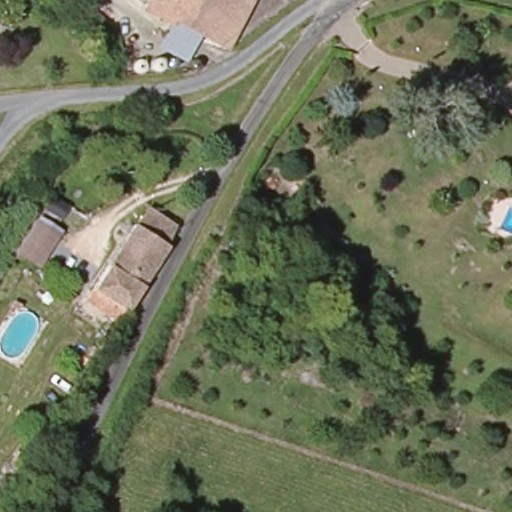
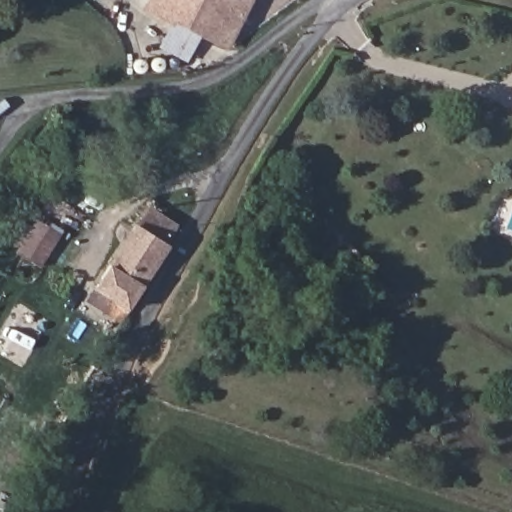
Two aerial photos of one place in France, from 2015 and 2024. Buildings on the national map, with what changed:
unchanged [(145,7),(149,0),(172,0),(163,17),(145,7)]
unchanged [(212,0),(240,14),(225,45),(172,18),(170,21),(163,17),(172,0),(212,0)]
unchanged [(212,0),(247,0),(240,14),(212,0)]
unchanged [(103,303),(93,297),(143,224),(153,209),(181,227),(172,241),(130,305),(123,300),(116,311),(103,303)]
unchanged [(61,239),(41,267),(21,254),(40,226),(61,239)]

